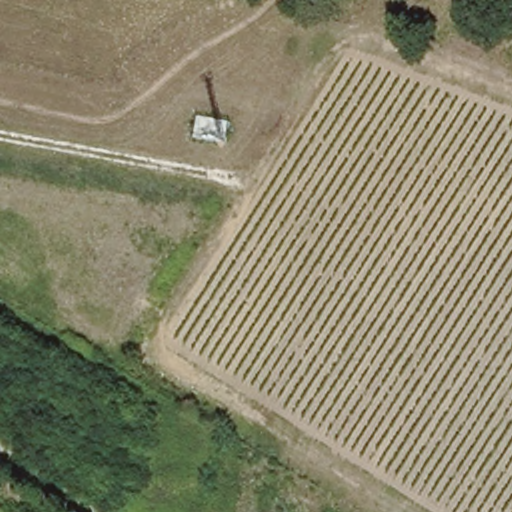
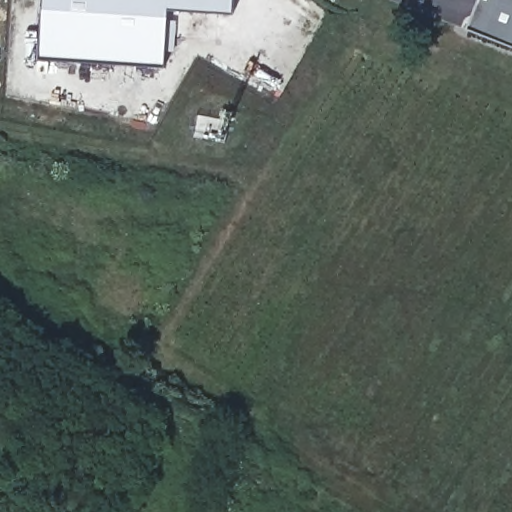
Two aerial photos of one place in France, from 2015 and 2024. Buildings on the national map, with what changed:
new [(231,14),(166,9),(161,67),(36,59),(41,0),(232,0),(231,14)]
new [(512,49),(463,28),(474,0),(512,0),(512,49)]

